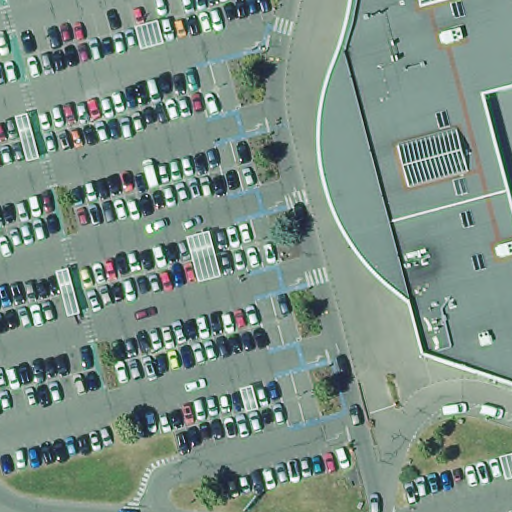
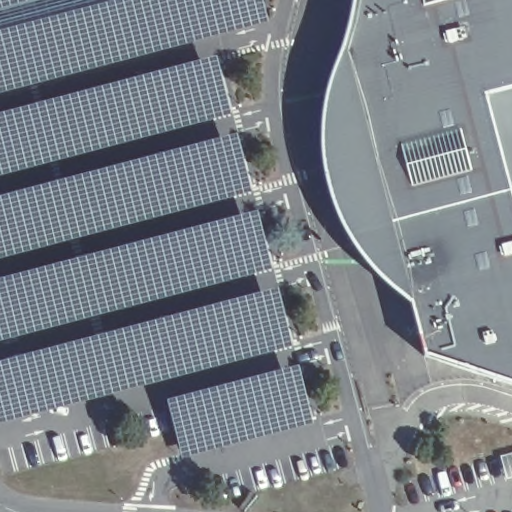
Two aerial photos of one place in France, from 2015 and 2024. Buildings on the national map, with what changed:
unchanged [(428,357),(415,307),(384,281),(370,266),(358,250),(348,233),(339,215),(327,177),(325,157),(323,137),(325,117),(328,98),(334,78),(340,60),(347,41),(352,21),(355,2),(355,0),(512,0),(512,385),(428,357)]
new [(231,115),(0,176),(0,115),(216,57),(231,115)]
new [(251,192),(0,259),(0,198),(236,135),(251,192)]
new [(0,280),(257,212),(272,270),(0,342),(0,280)]
new [(0,363),(277,289),(292,347),(0,424),(0,363)]
new [(289,366),(290,369),(295,367),(315,422),(310,425),(183,459),(167,402),(289,366)]

